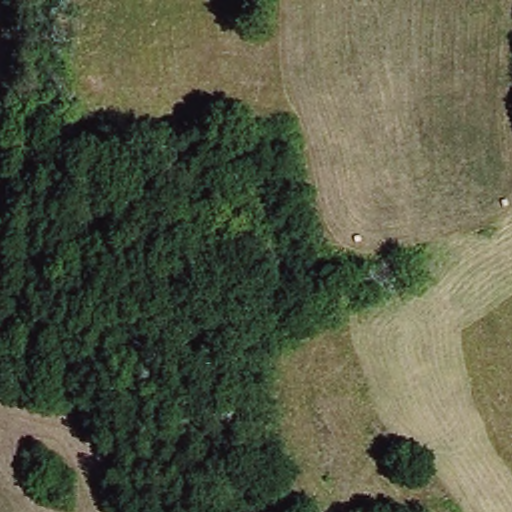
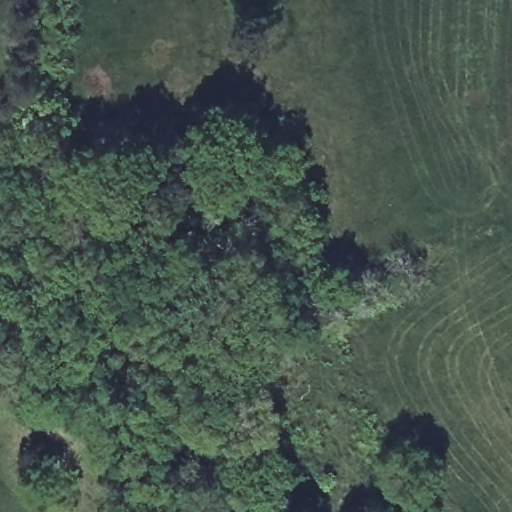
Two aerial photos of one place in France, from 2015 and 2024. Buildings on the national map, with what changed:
[]

